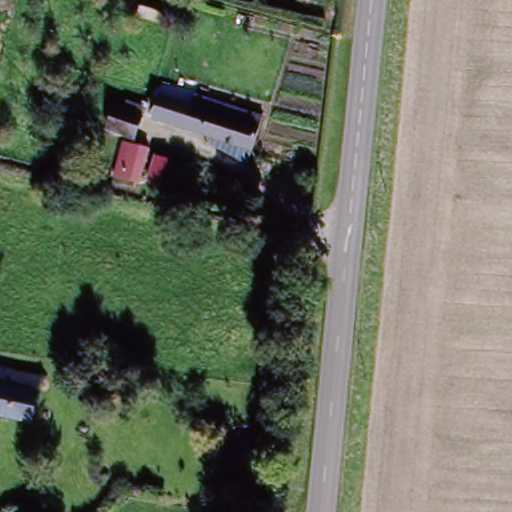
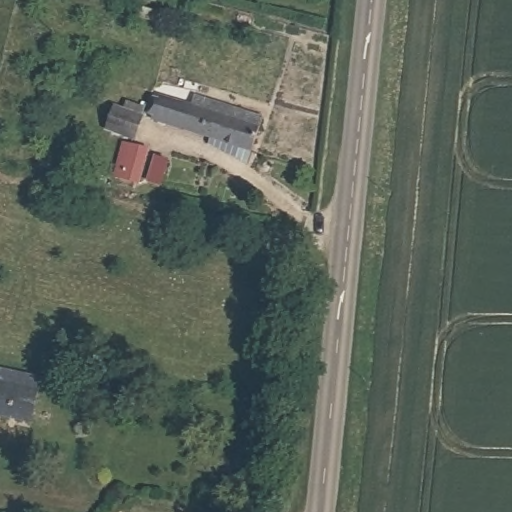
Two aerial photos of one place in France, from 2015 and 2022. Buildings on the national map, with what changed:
unchanged [(0,1),(0,0),(2,0),(2,1),(0,1)]
unchanged [(163,96),(193,107),(197,98),(264,119),(261,128),(253,155),(154,122),(163,96)]
unchanged [(137,143),(104,132),(114,105),(126,109),(128,102),(147,109),(137,143)]
unchanged [(116,179),(124,147),(152,153),(142,187),(116,179)]
unchanged [(8,389),(12,373),(45,381),(33,424),(0,416),(0,387),(8,389)]

